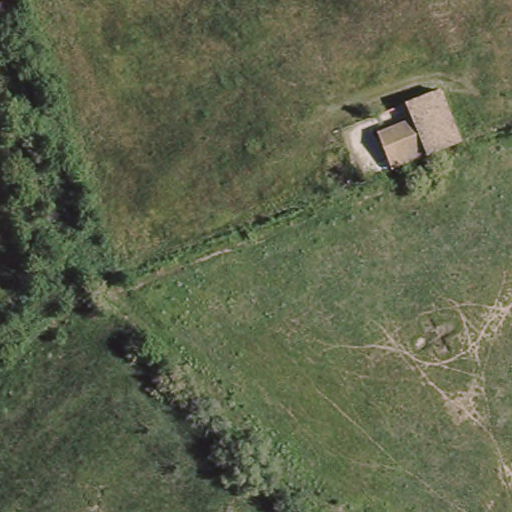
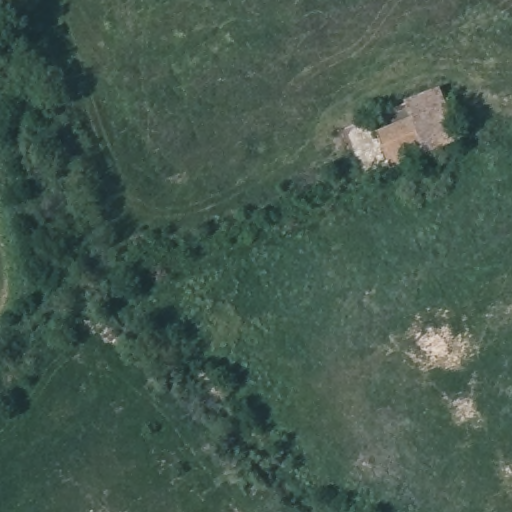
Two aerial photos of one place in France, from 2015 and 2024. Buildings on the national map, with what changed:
unchanged [(0,36),(0,34),(1,35),(0,36)]
unchanged [(376,132),(413,118),(404,98),(442,85),(462,144),(391,169),(376,132)]

